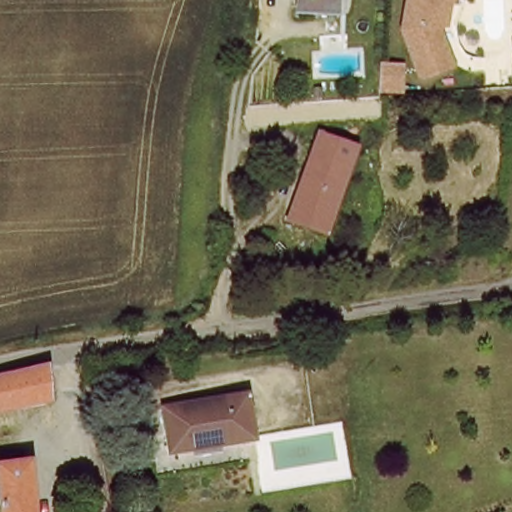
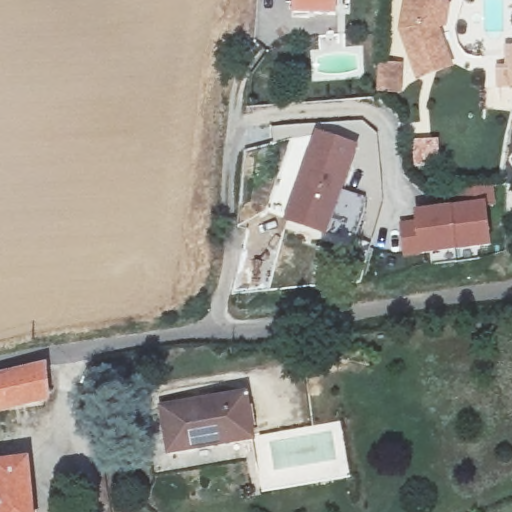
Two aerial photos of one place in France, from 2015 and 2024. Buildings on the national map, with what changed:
unchanged [(333,8),(291,5),(291,0),(334,0),(333,8)]
unchanged [(415,83),(408,64),(397,36),(403,0),(451,0),(443,10),(439,30),(432,32),(440,52),(447,70),(415,83)]
unchanged [(349,153),(322,236),(290,223),(314,141),(349,153)]
new [(460,204),(458,187),(490,182),(493,200),(485,202),(490,241),(456,246),(450,205),(460,204)]
new [(417,220),(415,210),(450,205),(456,246),(405,253),(401,222),(417,220)]
unchanged [(47,412),(18,416),(0,420),(0,385),(45,376),(47,412)]
unchanged [(255,440),(172,455),(163,408),(246,392),(255,440)]
unchanged [(34,512),(0,512),(0,469),(29,467),(34,512)]

